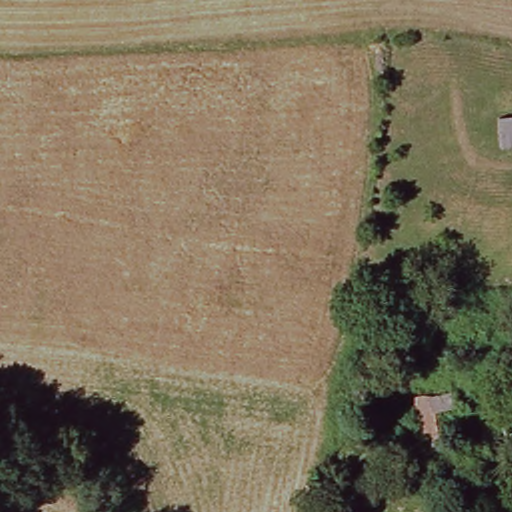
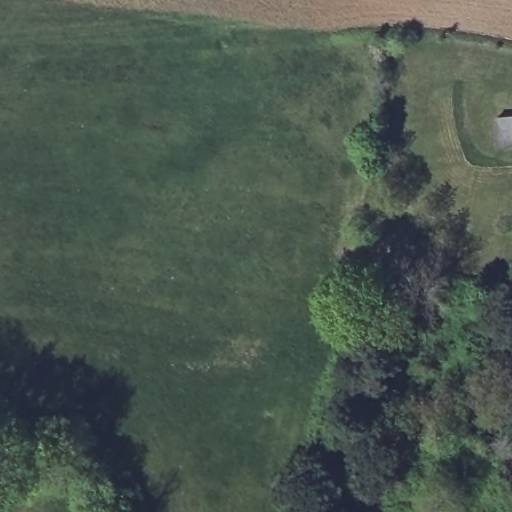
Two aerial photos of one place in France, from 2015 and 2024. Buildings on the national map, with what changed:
unchanged [(495,149),(498,118),(512,119),(512,150),(495,149)]
unchanged [(452,396),(453,411),(435,419),(437,460),(422,458),(412,400),(452,396)]

